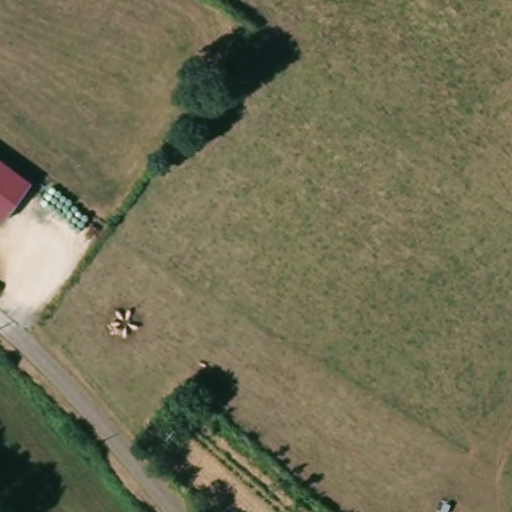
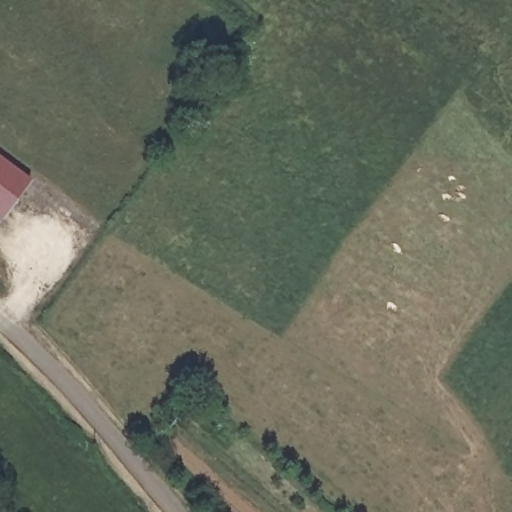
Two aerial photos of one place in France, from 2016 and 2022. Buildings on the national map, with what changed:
unchanged [(0,161),(30,183),(0,223),(0,161)]

